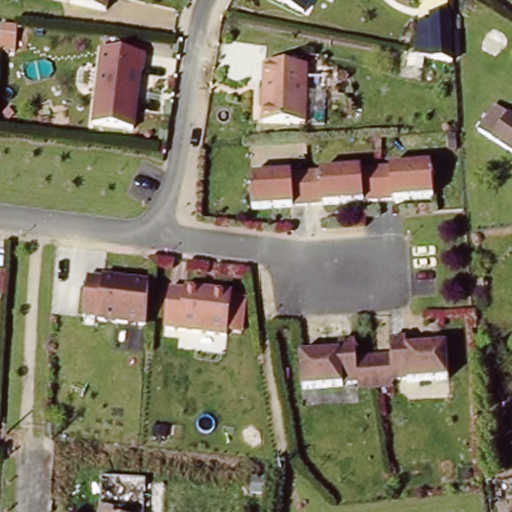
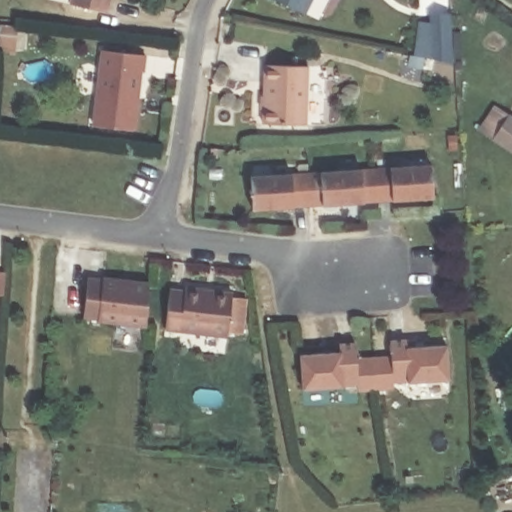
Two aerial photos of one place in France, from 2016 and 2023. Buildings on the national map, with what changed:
unchanged [(107,9),(72,0),(108,0),(107,9)]
unchanged [(305,7),(290,0),(308,0),(305,7)]
unchanged [(430,21),(430,12),(451,11),(453,61),(432,61),(413,56),(419,19),(430,21)]
unchanged [(144,56),(135,126),(91,120),(101,52),(144,56)]
unchanged [(307,120),(267,121),(267,65),(306,67),(307,120)]
unchanged [(507,114),(512,118),(512,151),(491,136),(507,114)]
unchanged [(311,174),(311,186),(324,185),(321,171),(380,167),(382,177),(391,177),(390,166),(431,165),(435,195),(396,198),(385,198),(325,202),(317,202),(255,207),(252,177),(311,174)]
unchanged [(103,276),(149,282),(148,322),(101,317),(86,317),(90,275),(103,276)]
unchanged [(193,290),(194,284),(215,286),(214,292),(229,293),(230,335),(166,328),(170,286),(193,290)]
unchanged [(339,353),(337,342),(356,341),(361,355),(391,353),(391,337),(408,334),(409,346),(447,345),(448,376),(393,380),(394,386),(361,387),(360,380),(305,384),(302,353),(339,353)]
unchanged [(145,512),(102,512),(105,478),(148,482),(145,512)]

